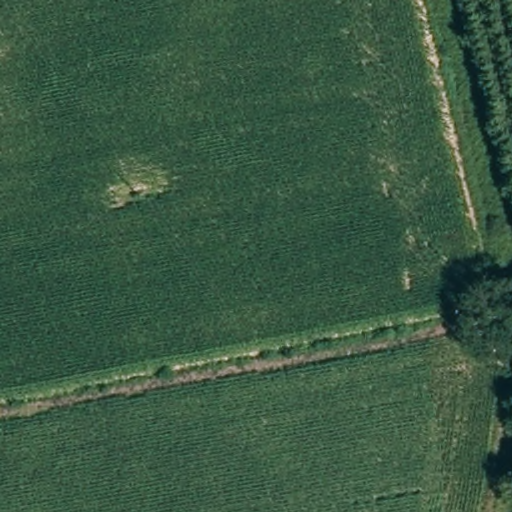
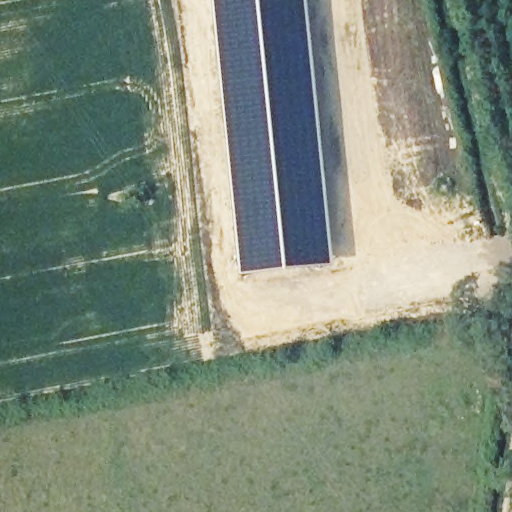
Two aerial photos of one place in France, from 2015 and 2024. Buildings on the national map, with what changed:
new [(311,0),(337,268),(244,277),(216,0),(311,0)]

